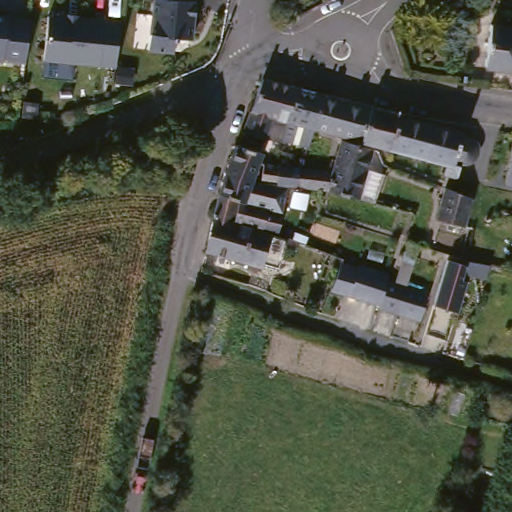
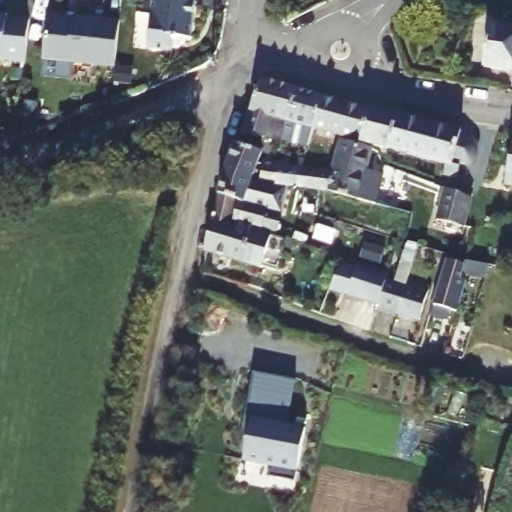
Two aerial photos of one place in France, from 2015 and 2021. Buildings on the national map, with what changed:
unchanged [(201,0),(200,17),(157,12),(158,0),(201,0)]
unchanged [(125,14),(120,59),(49,52),(53,9),(80,11),(84,9),(125,14)]
unchanged [(14,11),(14,12),(36,14),(32,57),(10,55),(10,56),(0,55),(0,10),(14,11)]
unchanged [(199,37),(185,36),(180,41),(179,50),(154,48),(157,12),(200,17),(199,37)]
unchanged [(485,28),(512,32),(512,75),(479,70),(485,28)]
unchanged [(440,179),(443,169),(386,152),(362,145),(313,130),(305,147),(302,153),(281,146),(242,132),(260,80),(298,91),(325,98),(370,111),(371,108),(396,115),(438,128),(453,132),(463,135),(461,139),(472,143),(474,147),(475,151),(475,155),(475,159),(472,163),(470,166),(466,169),(462,170),(458,170),(448,168),(447,170),(455,173),(453,182),(440,179)]
unchanged [(244,201),(235,197),(216,192),(234,144),(235,142),(260,153),(258,160),(257,163),(244,201)]
unchanged [(296,188),(292,187),(271,184),(258,181),(260,164),(275,167),(295,170),(332,176),(341,145),(342,143),(361,149),(370,152),(365,170),(380,174),(370,205),(326,193),(315,191),(296,188)]
unchanged [(156,160),(136,168),(130,152),(150,145),(156,160)]
unchanged [(512,147),(512,189),(506,189),(512,147)]
unchanged [(435,223),(443,190),(448,191),(466,196),(471,197),(463,231),(435,223)]
unchanged [(280,274),(260,267),(258,270),(203,249),(216,192),(235,197),(230,219),(229,222),(290,245),(280,274)]
unchanged [(270,222),(267,233),(242,224),(232,220),(239,202),(265,212),(263,220),(270,222)]
new [(464,266),(466,261),(489,266),(486,277),(462,273),(460,280),(466,282),(456,312),(432,306),(446,261),(464,266)]
unchanged [(422,324),(400,317),(380,311),(381,307),(351,298),(360,269),(390,278),(388,284),(407,289),(430,297),(422,324)]
unchanged [(457,349),(465,328),(474,331),(466,353),(457,349)]
new [(253,414),(246,412),(251,375),(290,382),(288,419),(307,423),(296,479),(270,474),(272,462),(245,457),(253,414)]

